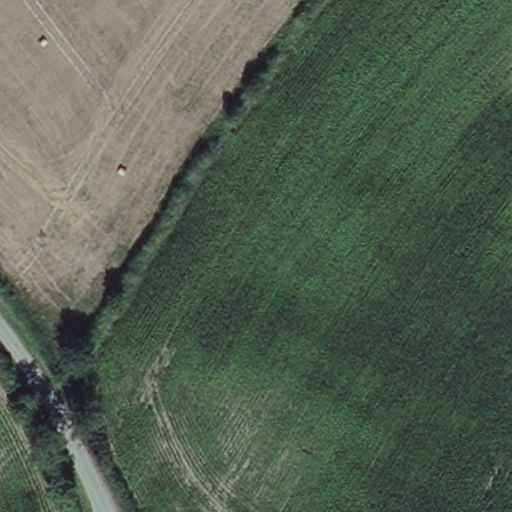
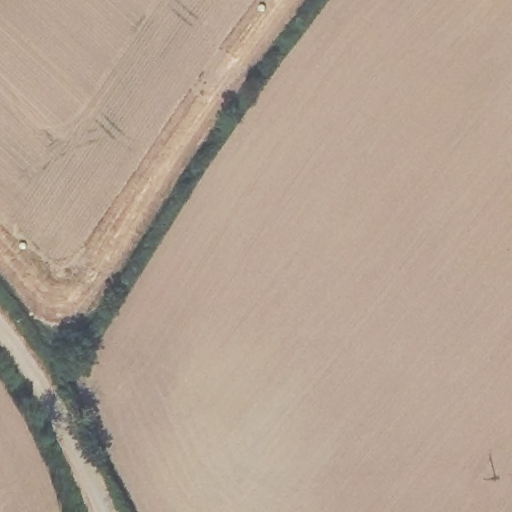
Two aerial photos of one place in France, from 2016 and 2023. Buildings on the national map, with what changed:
unchanged [(102,344),(118,360),(100,383),(83,367),(102,344)]

